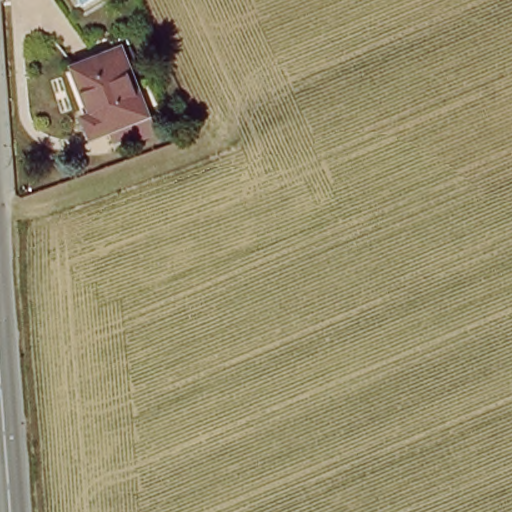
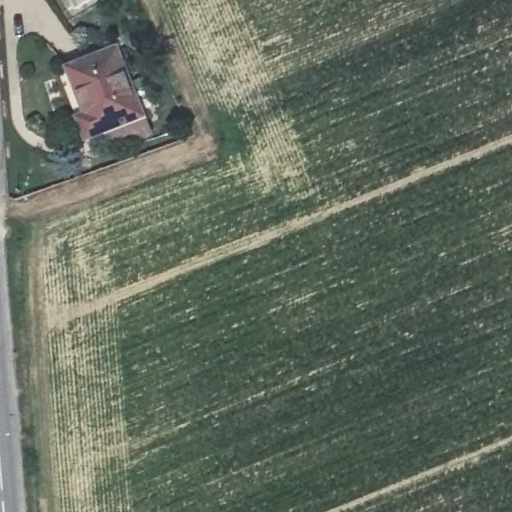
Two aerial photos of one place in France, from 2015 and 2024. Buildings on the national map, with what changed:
unchanged [(72,70),(117,51),(143,117),(90,140),(81,120),(89,117),(72,70)]

